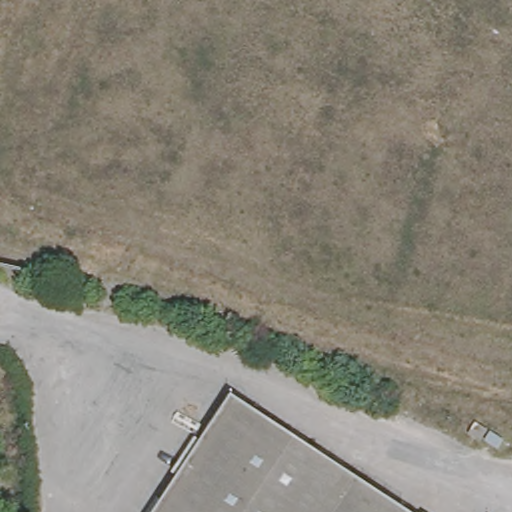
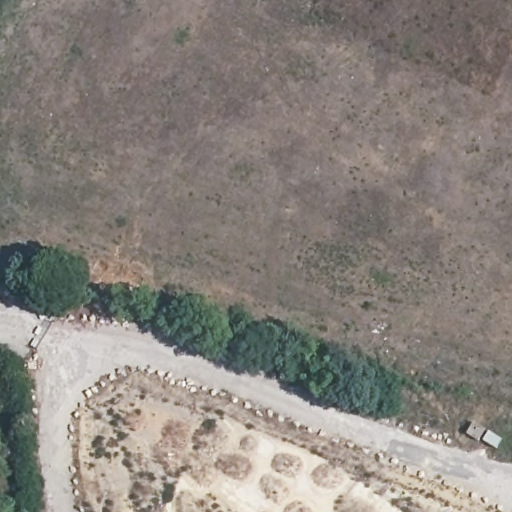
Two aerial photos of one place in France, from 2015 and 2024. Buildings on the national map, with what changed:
demolished [(413,512),(160,512),(236,398),(413,512)]
unchanged [(475,422),(487,430),(479,442),(467,434),(475,422)]

